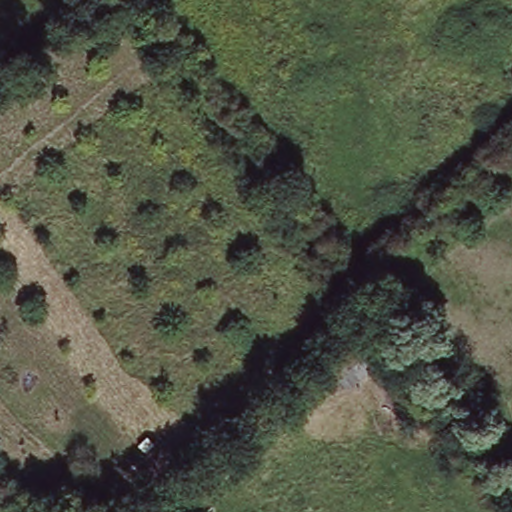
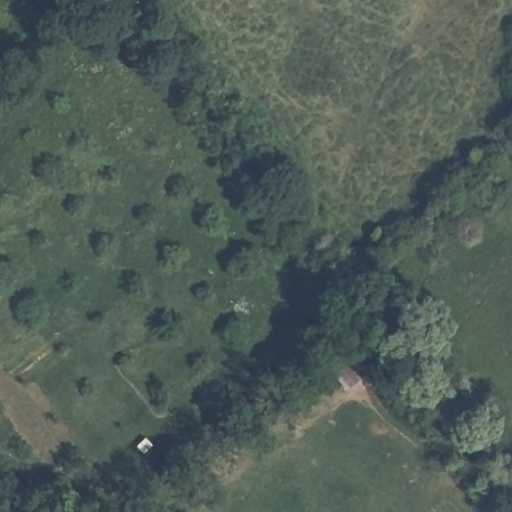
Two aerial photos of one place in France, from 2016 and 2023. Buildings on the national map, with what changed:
unchanged [(365,375),(343,393),(321,365),(340,348),(344,344),(365,375)]

